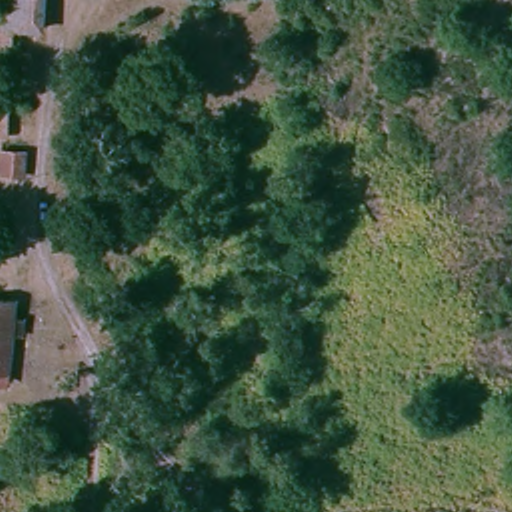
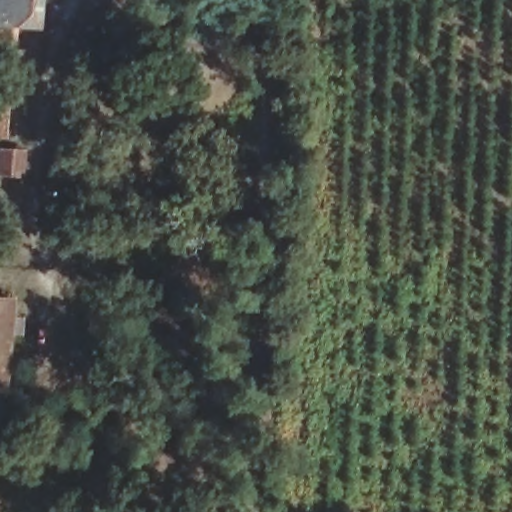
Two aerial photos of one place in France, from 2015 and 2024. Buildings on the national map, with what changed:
unchanged [(0,24),(0,0),(39,0),(38,25),(0,24)]
unchanged [(5,135),(0,135),(0,98),(8,99),(5,135)]
unchanged [(4,210),(0,209),(0,176),(7,177),(4,210)]
unchanged [(4,388),(0,388),(0,292),(12,293),(4,388)]

